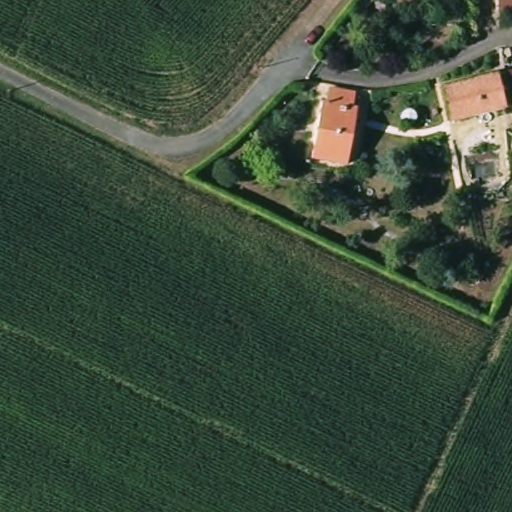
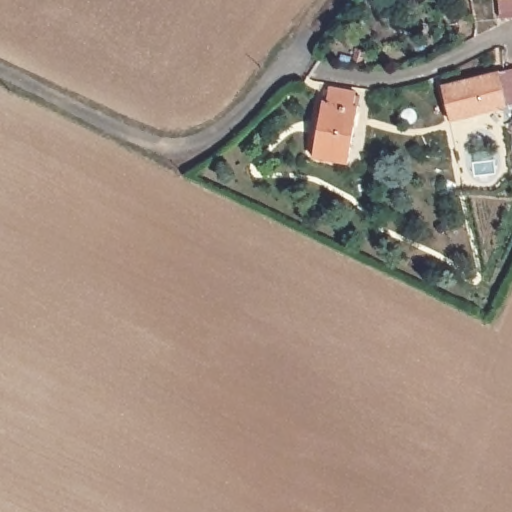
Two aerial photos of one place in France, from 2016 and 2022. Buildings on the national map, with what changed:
unchanged [(496,0),(512,0),(512,25),(495,25),(496,0)]
unchanged [(447,128),(439,87),(495,75),(504,115),(447,128)]
unchanged [(340,167),(309,160),(319,99),(323,98),(326,89),(352,93),(352,108),(356,109),(350,165),(340,167)]

